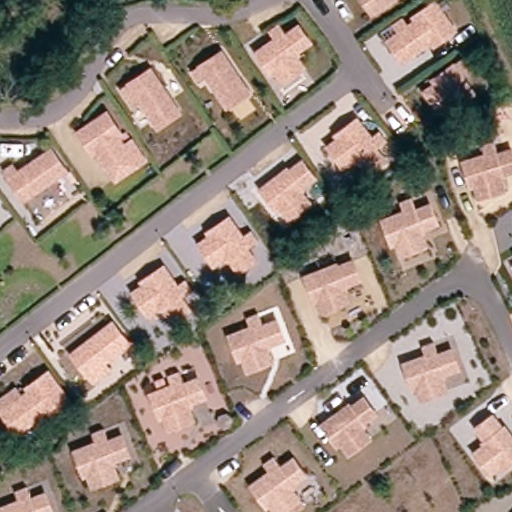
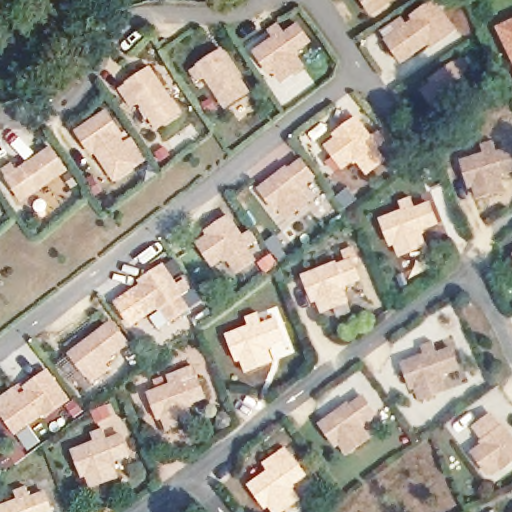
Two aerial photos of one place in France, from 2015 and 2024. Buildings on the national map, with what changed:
unchanged [(365,5),(362,0),(396,0),(389,5),(372,16),(365,5)]
unchanged [(388,37),(399,30),(393,21),(403,14),(409,23),(416,18),(414,14),(435,0),(436,0),(456,29),(434,44),(431,40),(413,52),(402,59),(388,37)]
new [(497,28),(512,21),(512,60),(497,28)]
unchanged [(284,84),(275,73),(272,76),(256,54),(275,41),(269,33),(279,25),(287,36),(299,27),(311,44),(299,53),(301,55),(297,58),(305,68),(284,84)]
unchanged [(229,104),(221,93),(208,74),(199,79),(192,68),(222,48),(241,76),(250,90),(229,104)]
unchanged [(422,88),(434,80),(431,75),(461,55),(469,68),(461,74),(473,91),(451,106),(449,102),(437,110),(422,88)]
unchanged [(159,125),(142,99),(134,104),(121,85),(141,73),(151,66),(163,82),(182,110),(159,125)]
unchanged [(121,182),(114,170),(102,153),(99,155),(84,133),(114,113),(129,135),(131,133),(136,141),(138,140),(145,150),(136,156),(144,167),(121,182)]
unchanged [(332,143),(343,135),(340,131),(361,115),(376,133),(383,127),(391,137),(381,145),(390,157),(374,170),(364,158),(362,159),(359,155),(348,164),(332,143)]
unchanged [(480,198),(476,185),(472,186),(464,161),(486,155),(483,145),(495,141),(499,154),(512,150),(512,172),(505,174),(506,176),(502,177),(506,190),(480,198)]
unchanged [(18,191),(4,171),(14,165),(20,173),(54,150),(69,172),(39,192),(25,202),(18,191)]
unchanged [(289,218),(281,207),(277,210),(260,189),(289,167),(290,170),(302,161),(315,177),(303,186),(305,189),(302,192),(309,202),(289,218)]
unchanged [(403,209),(401,202),(414,196),(418,206),(432,201),(442,226),(424,233),(431,247),(402,257),(397,246),(393,246),(382,218),(403,209)]
unchanged [(199,244),(210,236),(208,232),(229,217),(243,236),(251,231),(259,241),(248,248),(256,261),(239,273),(230,260),(228,262),(225,257),(214,265),(199,244)]
unchanged [(339,260),(340,262),(354,257),(364,281),(348,288),(353,303),(324,313),(319,303),(315,304),(305,274),(339,260)]
unchanged [(134,292),(145,285),(142,281),(164,266),(178,285),(185,279),(193,290),(182,297),(190,309),(173,321),(164,309),(163,310),(159,306),(148,313),(134,292)]
unchanged [(250,325),(247,320),(259,314),(264,322),(277,317),(287,343),(275,346),(273,351),(277,362),(248,371),(243,360),(239,360),(229,333),(250,325)]
unchanged [(85,340),(114,319),(130,341),(105,358),(111,367),(93,380),(79,361),(71,351),(85,340)]
unchanged [(427,354),(423,344),(434,340),(439,351),(453,345),(463,370),(449,374),(448,381),(450,392),(422,399),(418,389),(413,390),(403,361),(427,354)]
unchanged [(0,409),(11,401),(29,388),(26,385),(49,368),(69,397),(47,413),(44,409),(27,422),(16,430),(0,409)]
unchanged [(169,427),(164,415),(160,416),(150,392),(172,384),(169,374),(180,370),(185,382),(199,377),(207,396),(193,401),(194,404),(189,405),(194,418),(169,427)]
unchanged [(349,453),(341,442),(338,445),(322,423),(351,402),(353,405),(364,396),(377,413),(364,421),(367,424),(363,427),(371,438),(349,453)]
unchanged [(483,442),(473,428),(494,412),(512,435),(512,464),(493,478),(472,451),(483,442)]
unchanged [(94,441),(91,433),(105,428),(109,436),(122,432),(132,458),(117,463),(120,477),(93,487),(88,478),(83,478),(73,448),(94,441)]
unchanged [(0,456),(0,450),(3,454),(0,456)]
unchanged [(265,465),(274,457),(282,465),(294,456),(309,476),(298,484),(297,491),(303,499),(284,512),(275,512),(271,508),(268,509),(249,484),(269,469),(265,465)]
unchanged [(15,491),(28,486),(32,495),(48,490),(56,512),(0,512),(0,505),(19,499),(15,491)]

